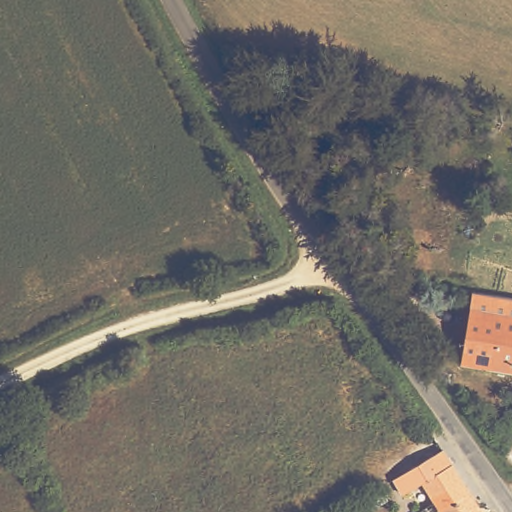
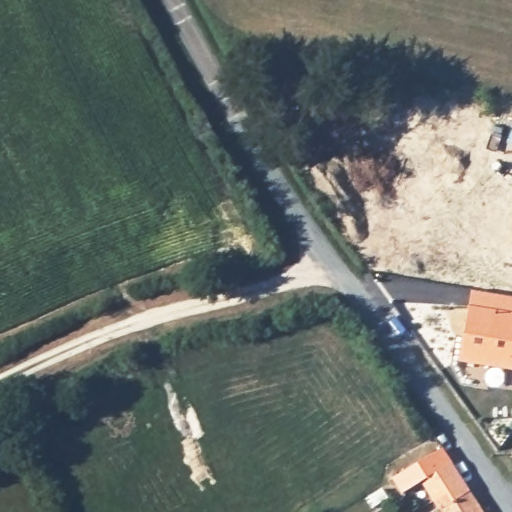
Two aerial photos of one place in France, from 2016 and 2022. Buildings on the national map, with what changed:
unchanged [(495,302),(512,305),(512,377),(457,368),(470,297),(495,302)]
unchanged [(422,478),(403,490),(396,478),(425,461),(425,456),(444,446),(470,487),(440,507),(422,478)]
unchanged [(470,487),(486,512),(443,512),(440,507),(470,487)]

